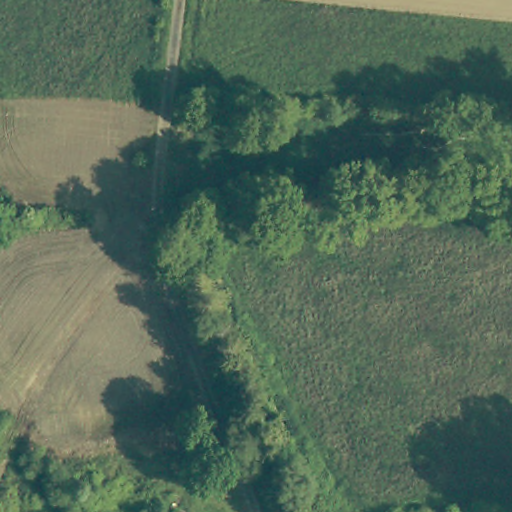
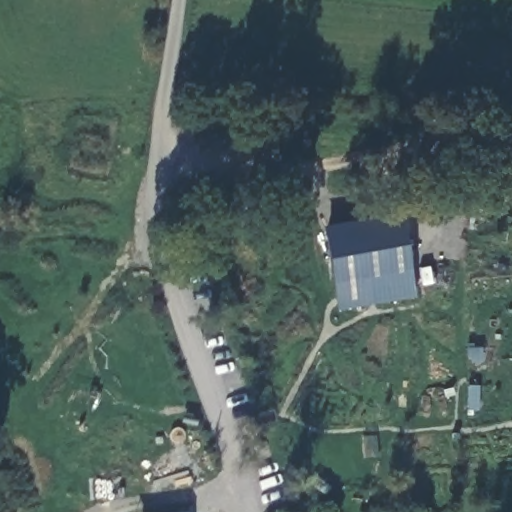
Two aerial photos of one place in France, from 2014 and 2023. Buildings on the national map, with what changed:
new [(402,213),(414,295),(337,308),(324,226),(402,213)]
unchanged [(186,512),(173,512),(185,510),(186,512)]

